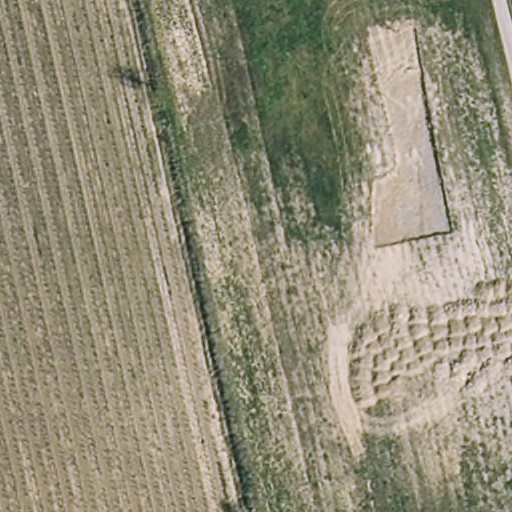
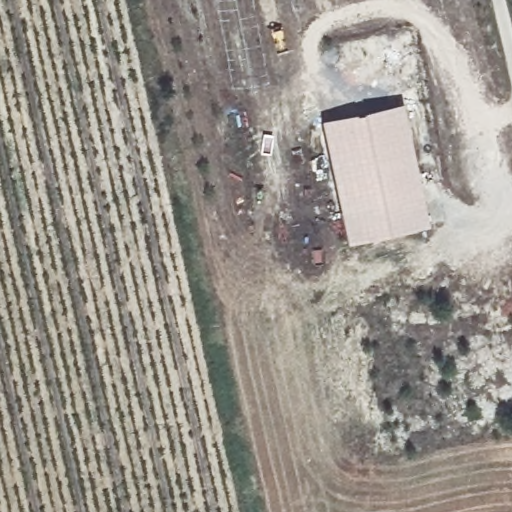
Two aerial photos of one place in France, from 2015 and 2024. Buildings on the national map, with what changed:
new [(345,245),(320,120),(402,103),(427,227),(345,245)]

